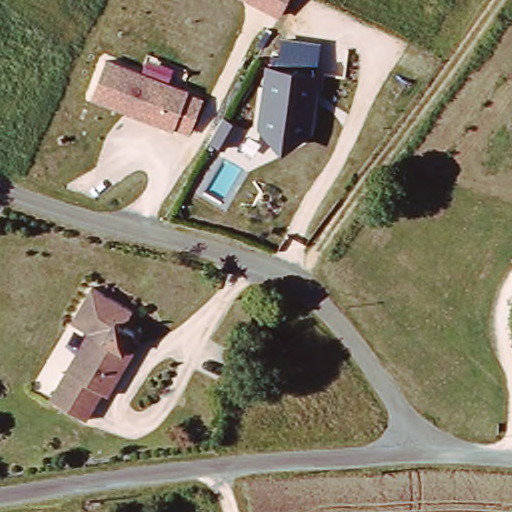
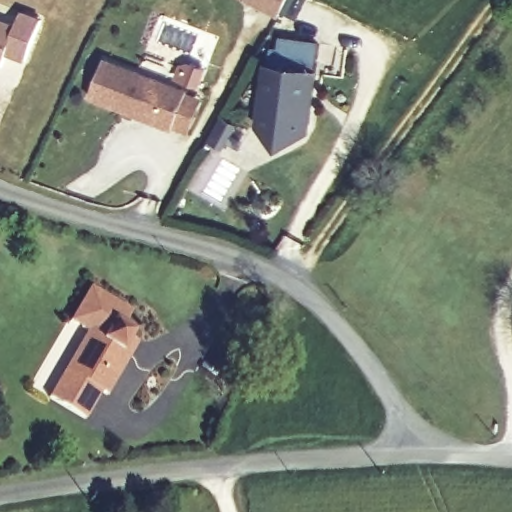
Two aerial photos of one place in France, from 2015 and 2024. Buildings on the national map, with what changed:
new [(243,0),(288,0),(280,18),(243,0)]
new [(0,67),(0,19),(17,25),(23,11),(42,19),(25,61),(7,55),(1,68),(0,67)]
unchanged [(273,65),(275,52),(282,48),(282,36),(318,40),(315,69),(321,69),(312,133),(281,150),(256,128),(265,65),(273,65)]
unchanged [(189,88),(187,91),(203,98),(190,133),(173,126),(172,130),(91,99),(107,56),(189,88)]
unchanged [(58,398),(94,335),(77,323),(97,289),(137,313),(130,324),(140,331),(135,338),(145,346),(115,397),(108,393),(92,421),(58,398)]

